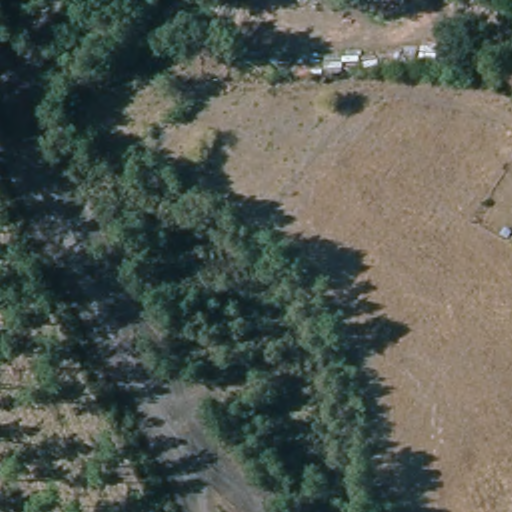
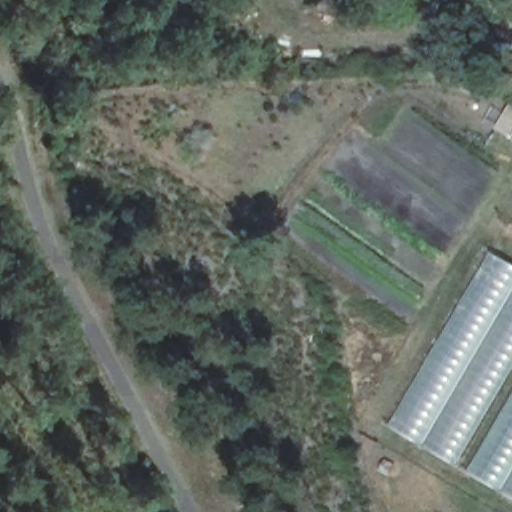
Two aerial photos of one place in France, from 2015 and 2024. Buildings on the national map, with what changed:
new [(512,266),(512,497),(389,426),(490,252),(512,266)]

